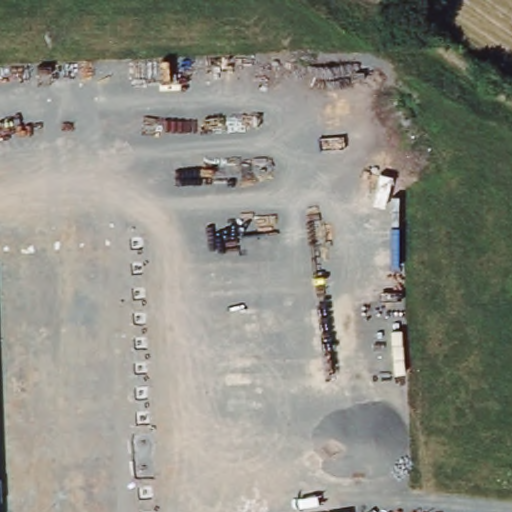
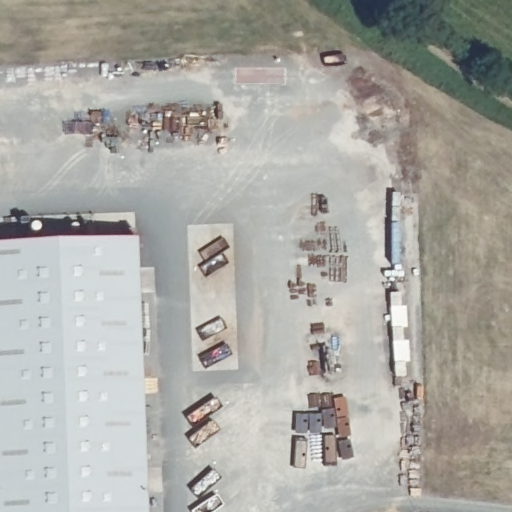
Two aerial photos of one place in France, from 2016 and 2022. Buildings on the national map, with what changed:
new [(136,242),(146,512),(0,512),(0,248),(136,242)]

